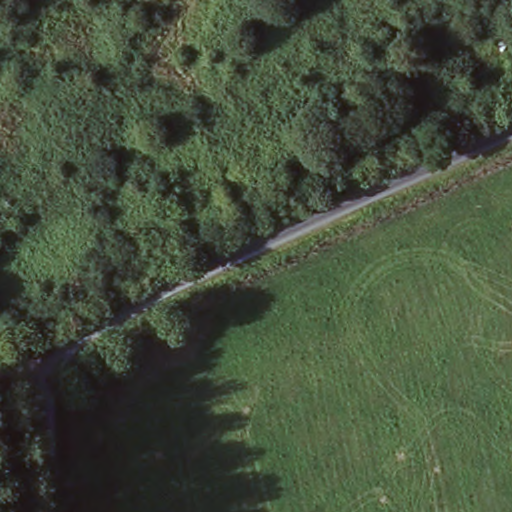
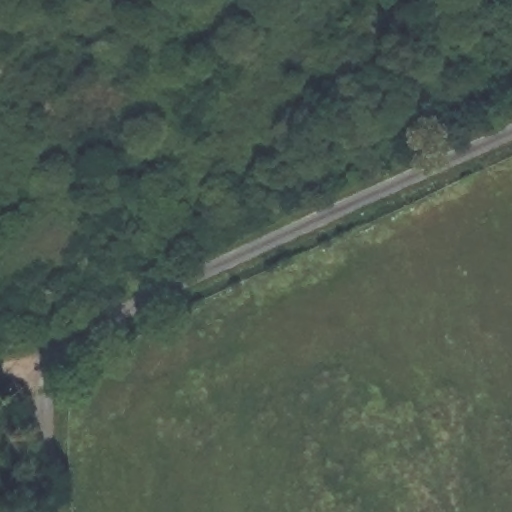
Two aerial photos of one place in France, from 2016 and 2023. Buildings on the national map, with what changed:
[]

